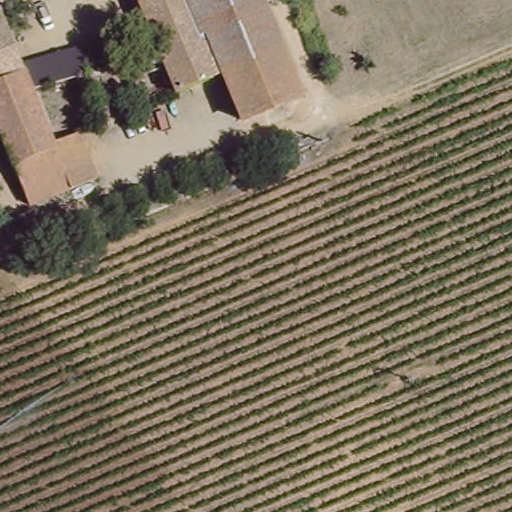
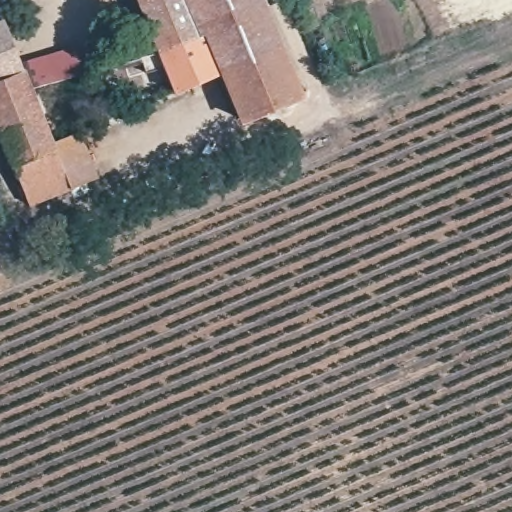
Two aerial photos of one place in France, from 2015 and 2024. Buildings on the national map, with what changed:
unchanged [(137,0),(184,0),(201,35),(160,53),(137,0)]
unchanged [(294,99),(240,121),(223,76),(206,33),(201,35),(184,0),(261,0),(298,85),(303,96),(294,99)]
unchanged [(0,81),(0,22),(4,20),(25,71),(0,81)]
unchanged [(167,69),(147,76),(141,62),(153,56),(160,53),(201,35),(206,33),(223,76),(177,95),(167,69)]
unchanged [(0,134),(0,81),(25,71),(32,87),(54,140),(56,144),(12,162),(0,134)]
unchanged [(79,130),(98,175),(72,185),(29,202),(12,162),(56,144),(54,140),(79,130)]

